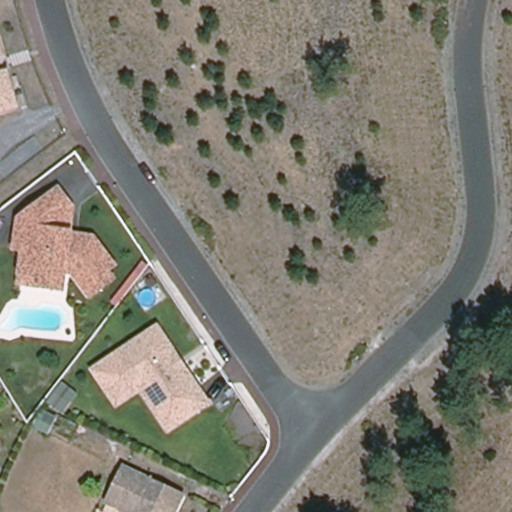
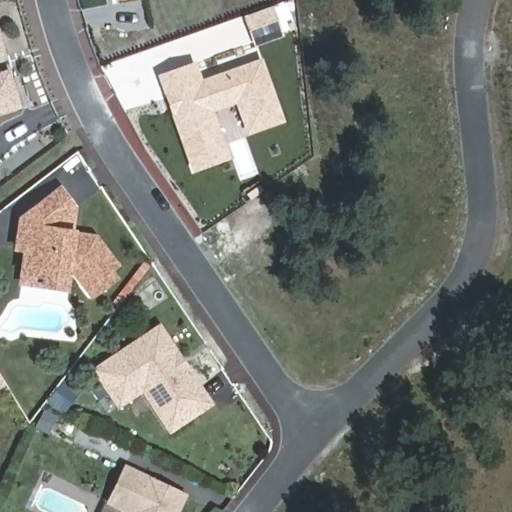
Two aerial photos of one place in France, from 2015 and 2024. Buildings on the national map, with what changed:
new [(139,0),(115,5),(114,0),(139,0)]
unchanged [(0,56),(0,35),(6,55),(0,56)]
new [(197,62),(202,79),(262,58),(285,123),(246,137),(235,105),(215,112),(232,160),(193,173),(156,75),(197,62)]
unchanged [(0,72),(11,69),(22,109),(0,115),(0,72)]
unchanged [(63,186),(78,208),(75,229),(95,231),(120,264),(112,271),(118,279),(90,298),(72,272),(69,293),(41,290),(20,286),(21,274),(18,273),(21,251),(11,249),(18,216),(63,186)]
unchanged [(160,324),(216,404),(170,434),(141,393),(117,408),(91,369),(160,324)]
unchanged [(65,414),(46,401),(61,380),(79,392),(65,414)]
unchanged [(50,436),(31,427),(41,407),(59,416),(50,436)]
unchanged [(111,500),(128,466),(186,494),(177,512),(135,512),(111,500)]

